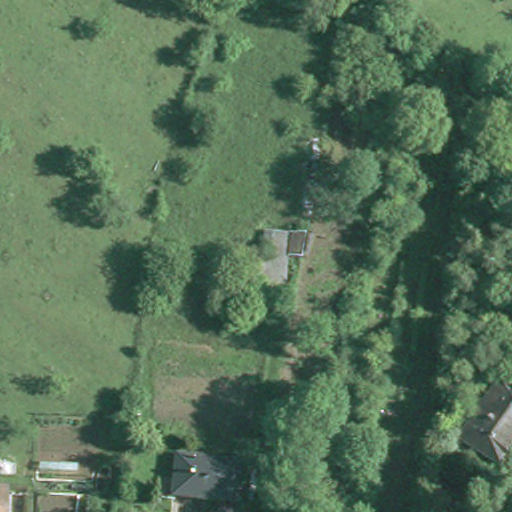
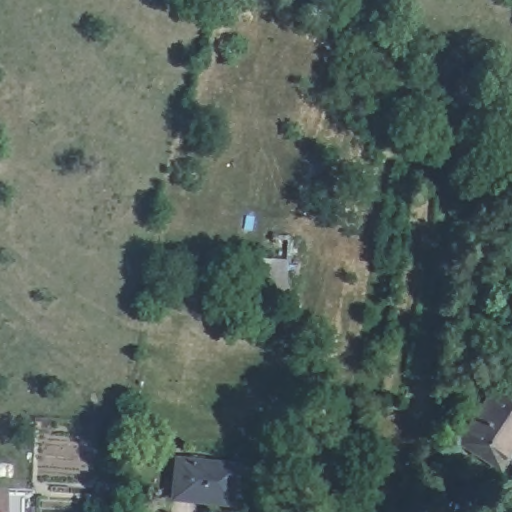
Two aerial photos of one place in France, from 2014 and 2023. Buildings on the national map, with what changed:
unchanged [(295,235),(292,305),(255,303),(259,236),(295,235)]
unchanged [(505,381),(512,387),(512,458),(504,470),(476,449),(464,441),(479,419),(505,381)]
unchanged [(232,511),(219,509),(173,503),(177,461),(224,469),(237,471),(232,511)]
unchanged [(6,512),(0,512),(0,493),(7,493),(6,512)]

